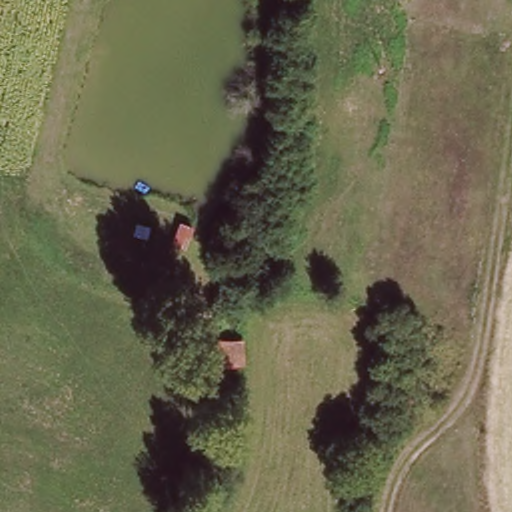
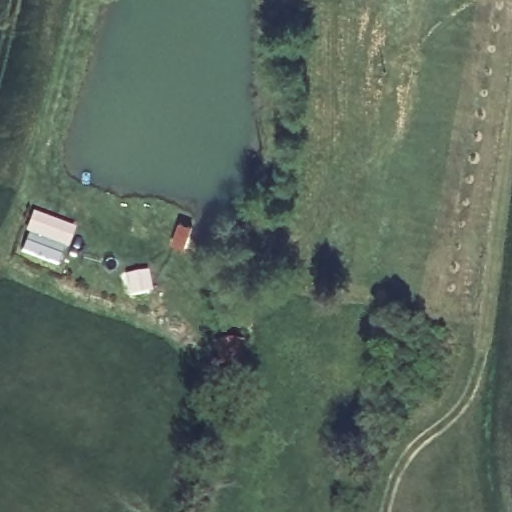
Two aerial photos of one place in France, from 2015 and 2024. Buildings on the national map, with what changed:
new [(58,267),(22,254),(29,238),(24,235),(31,214),(75,230),(58,267)]
unchanged [(212,368),(212,337),(222,337),(236,337),(240,337),(241,367),(230,367),(219,367),(212,368)]

